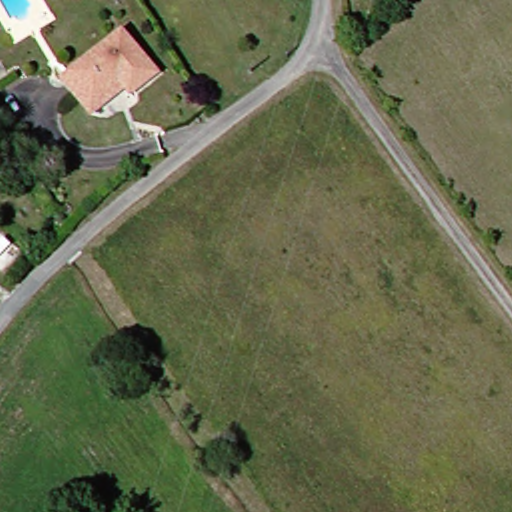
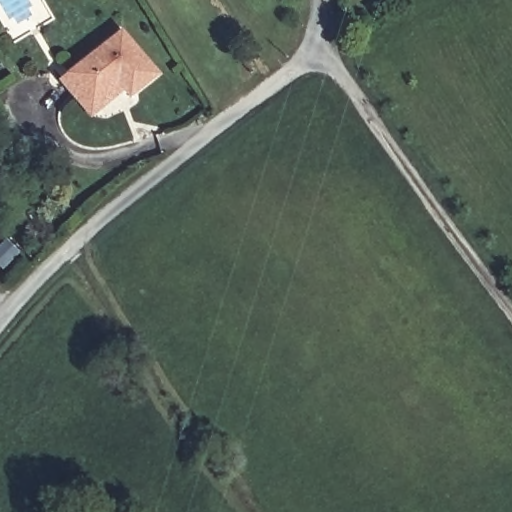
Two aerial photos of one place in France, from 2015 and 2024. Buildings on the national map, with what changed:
unchanged [(71,78),(81,71),(139,35),(162,72),(135,90),(130,84),(92,109),(71,78)]

